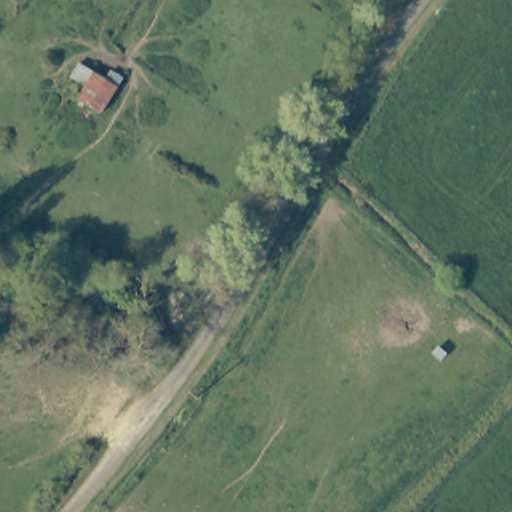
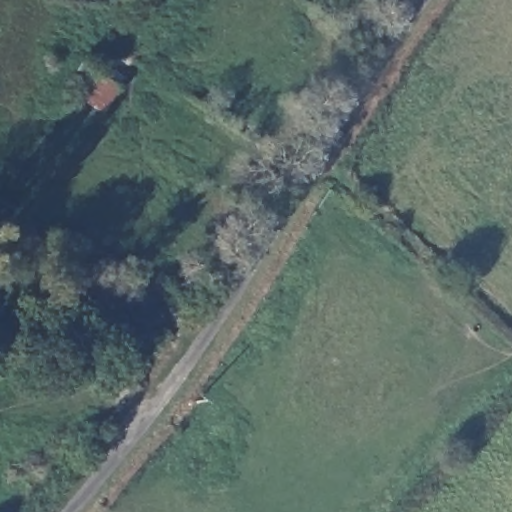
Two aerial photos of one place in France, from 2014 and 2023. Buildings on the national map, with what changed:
unchanged [(117,88),(99,115),(77,103),(93,75),(117,88)]

